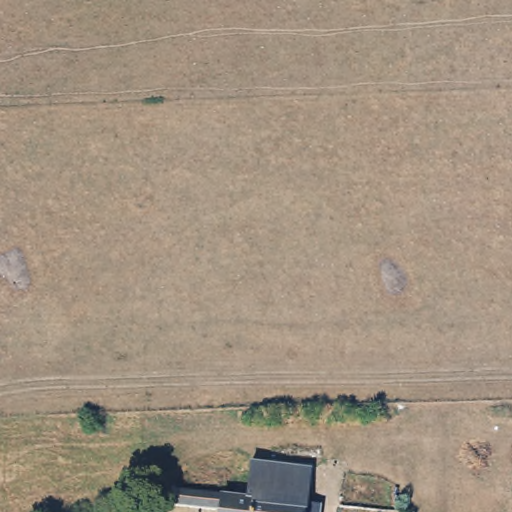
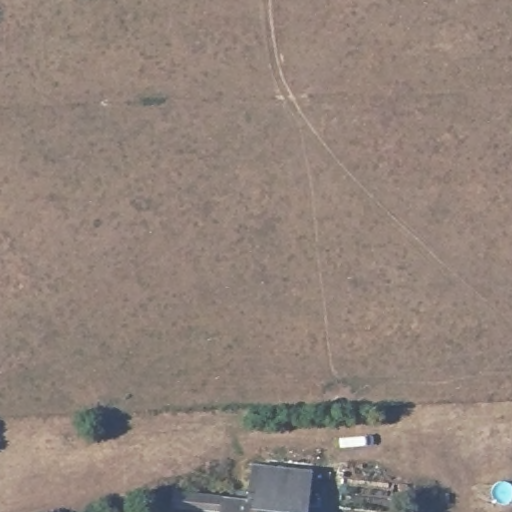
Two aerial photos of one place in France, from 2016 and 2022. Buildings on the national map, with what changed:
unchanged [(250,462),(310,467),(307,505),(246,499),(250,462)]
unchanged [(307,505),(321,507),(320,512),(219,512),(219,510),(168,506),(170,492),(246,499),(307,505)]

